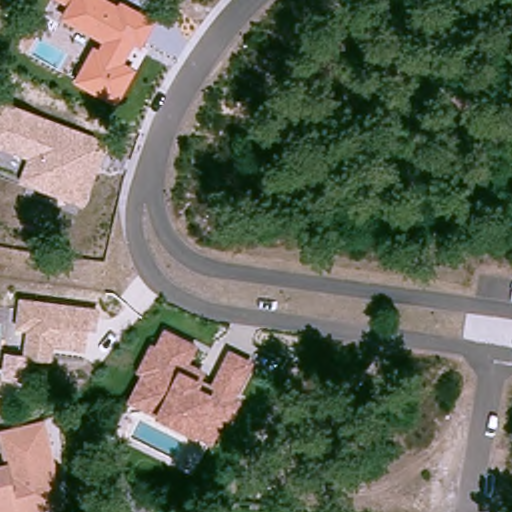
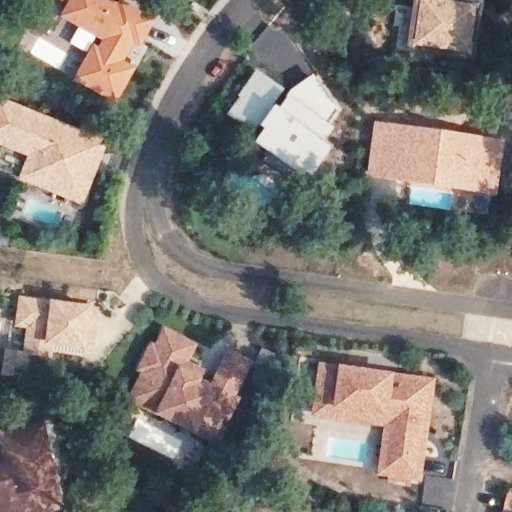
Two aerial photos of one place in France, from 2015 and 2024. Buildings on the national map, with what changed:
unchanged [(101,41),(61,18),(67,4),(61,0),(113,0),(119,3),(120,0),(124,0),(156,18),(143,42),(150,47),(117,105),(73,80),(93,46),(98,47),(101,41)]
new [(476,0),(468,55),(409,46),(414,0),(476,0)]
new [(290,90),(314,74),(337,106),(325,122),(332,129),(322,142),(329,147),(307,180),(253,143),(260,135),(226,116),(239,97),(257,71),(290,90)]
unchanged [(0,100),(109,142),(84,206),(19,181),(26,157),(0,147),(0,100)]
new [(373,121),(503,141),(495,197),(427,189),(364,177),(373,121)]
unchanged [(27,329),(15,327),(19,296),(102,308),(98,331),(90,330),(87,350),(53,346),(48,382),(1,375),(4,349),(22,352),(27,329)]
unchanged [(142,376),(134,372),(149,342),(155,344),(165,327),(200,342),(191,363),(207,371),(204,379),(212,383),(230,348),(255,360),(237,395),(245,398),(220,447),(129,400),(142,376)]
new [(341,363),(396,371),(437,376),(423,482),(377,476),(384,427),(312,417),(320,361),(341,363)]
unchanged [(13,508),(13,512),(0,512),(0,476),(11,476),(11,467),(0,467),(0,435),(37,435),(45,465),(46,507),(13,508)]

